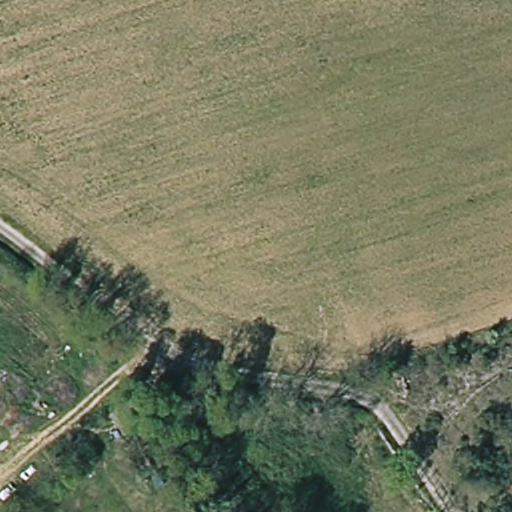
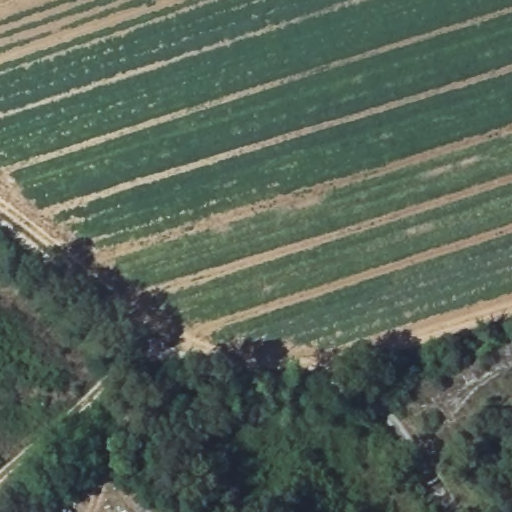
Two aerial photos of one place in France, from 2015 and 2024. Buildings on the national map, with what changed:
unchanged [(124,381),(144,400),(130,413),(110,396),(124,381)]

